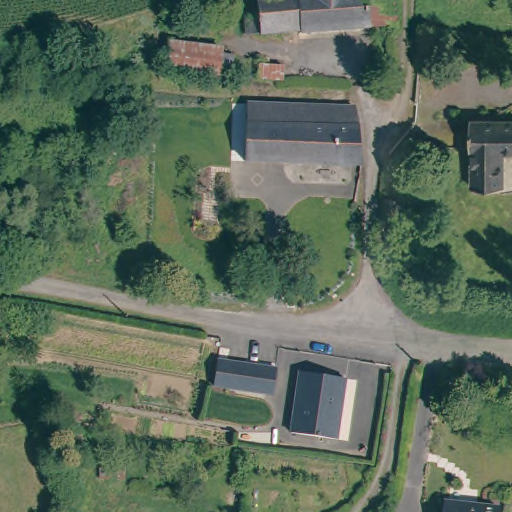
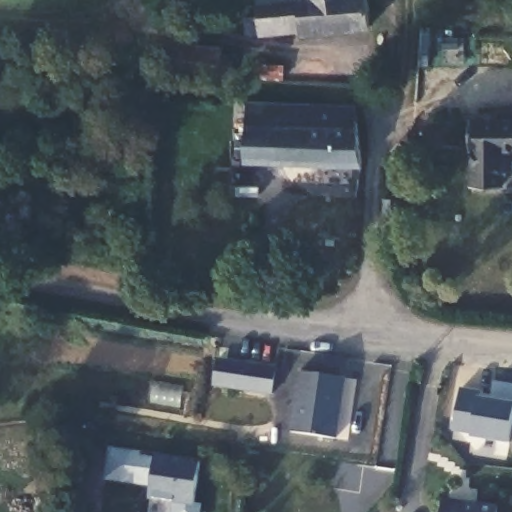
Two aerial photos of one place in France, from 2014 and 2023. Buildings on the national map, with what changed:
unchanged [(367,28),(257,30),(257,25),(245,25),(244,9),(257,9),(256,0),(366,0),(367,23),(367,28)]
unchanged [(367,23),(366,0),(392,0),(393,23),(367,23)]
unchanged [(219,74),(170,69),(174,40),(222,44),(219,74)]
unchanged [(256,99),(295,101),(291,163),(287,162),(250,159),(256,99)]
unchanged [(356,168),(291,163),(295,101),(357,105),(356,168)]
unchanged [(468,147),(468,115),(512,117),(512,149),(509,149),(508,185),(474,184),(475,147),(468,147)]
unchanged [(410,213),(392,212),(392,192),(411,193),(410,213)]
unchanged [(216,382),(220,358),(276,367),(272,392),(216,382)]
unchanged [(296,431),(306,369),(351,377),(341,438),(296,431)]
new [(477,390),(476,396),(487,397),(490,379),(512,382),(512,402),(507,439),(470,434),(470,431),(452,429),(457,387),(477,390)]
new [(201,463),(195,503),(202,503),(200,512),(171,512),(172,503),(150,499),(151,488),(104,478),(109,449),(155,456),(201,463)]
unchanged [(447,499),(503,507),(502,512),(446,512),(447,499)]

